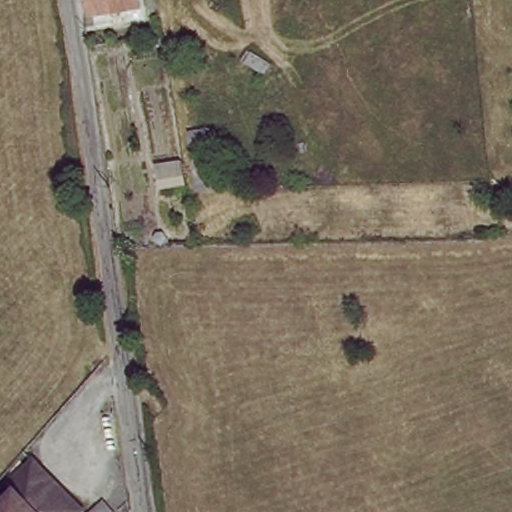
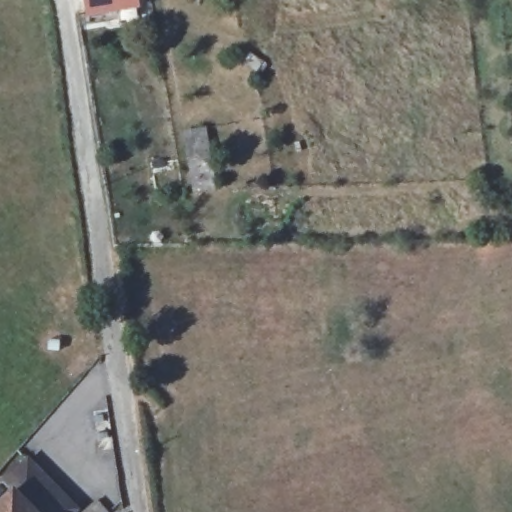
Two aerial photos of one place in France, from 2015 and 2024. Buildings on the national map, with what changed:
unchanged [(137,0),(138,5),(83,13),(80,0),(137,0)]
unchanged [(0,472),(14,456),(66,506),(61,512),(24,512),(0,489),(0,472)]
unchanged [(0,489),(24,512),(0,512),(0,489)]
unchanged [(99,510),(97,512),(69,512),(69,511),(86,496),(99,510)]

